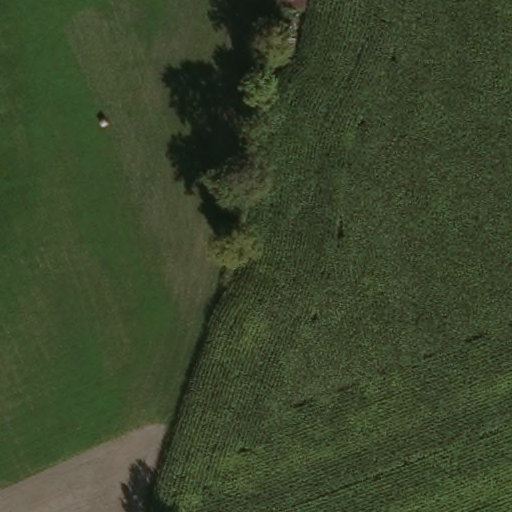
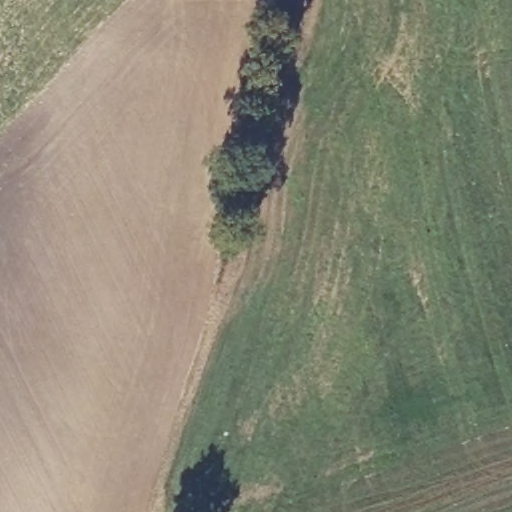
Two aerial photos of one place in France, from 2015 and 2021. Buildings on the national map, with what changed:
unchanged [(279,6),(280,0),(306,0),(304,9),(279,6)]

